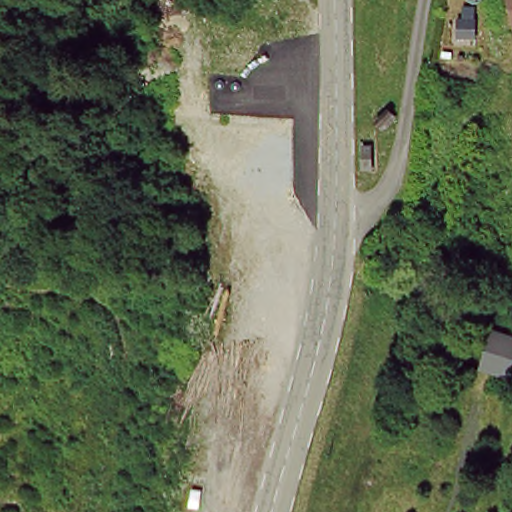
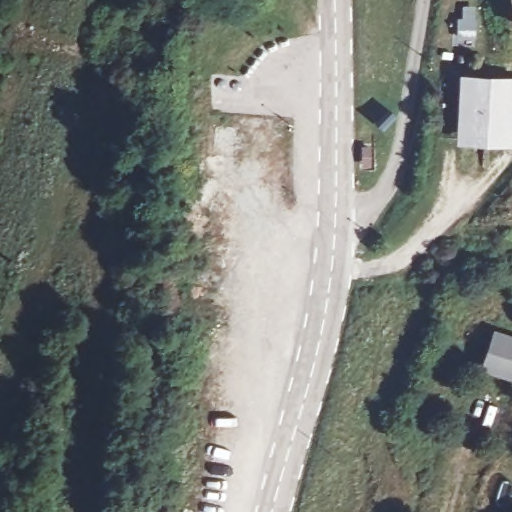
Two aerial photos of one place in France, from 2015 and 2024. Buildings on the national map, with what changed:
unchanged [(476,10),(476,26),(465,27),(465,11),(476,10)]
new [(512,78),(512,147),(456,143),(459,74),(512,78)]
new [(486,371),(497,336),(512,341),(512,379),(486,371)]
demolished [(496,380),(507,355),(512,357),(512,384),(496,380)]

